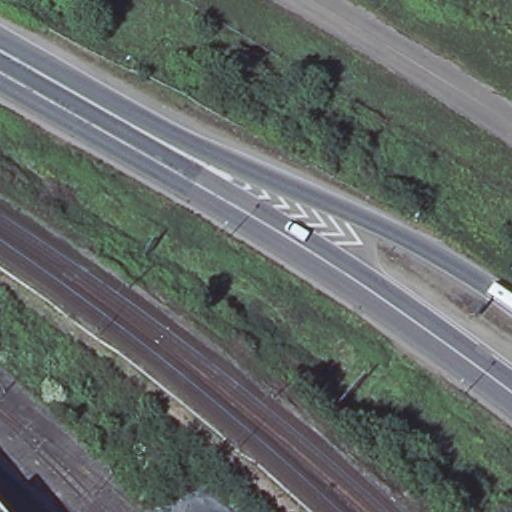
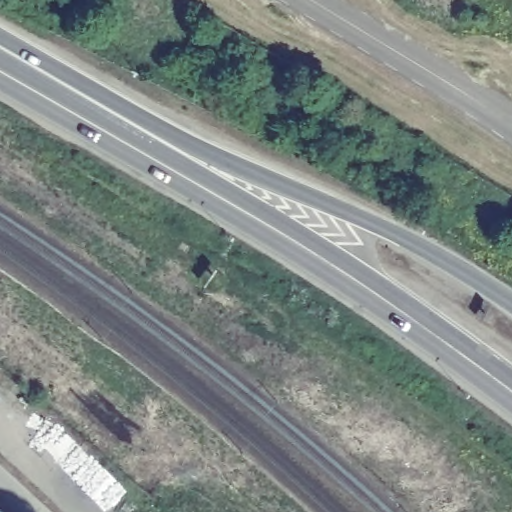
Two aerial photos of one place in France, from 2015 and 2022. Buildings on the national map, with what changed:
unchanged [(0,512),(0,511),(1,512),(0,512)]

